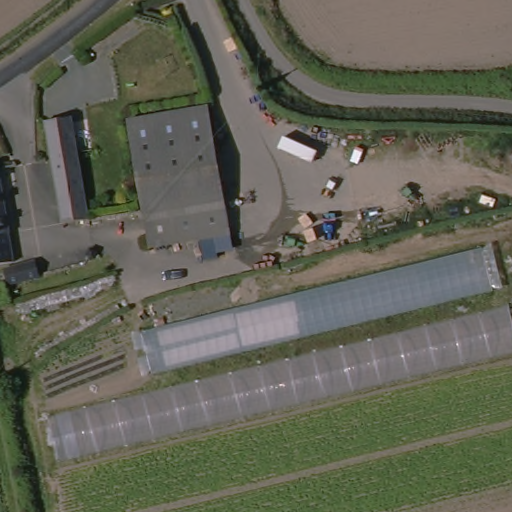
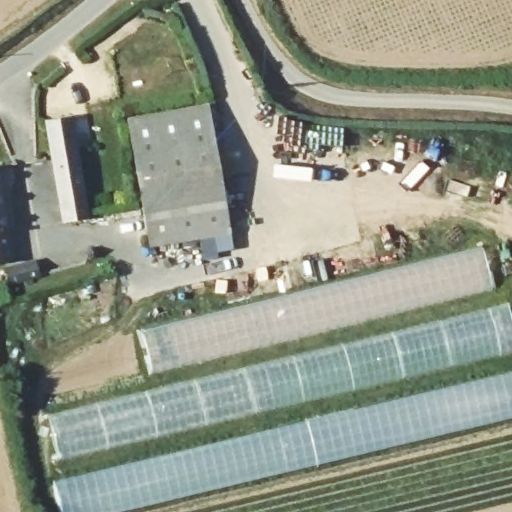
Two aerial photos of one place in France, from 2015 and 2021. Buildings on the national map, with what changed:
unchanged [(120,130),(198,108),(232,233),(153,255),(120,130)]
unchanged [(89,220),(63,227),(38,130),(62,121),(74,154),(89,220)]
unchanged [(74,154),(97,147),(114,214),(89,220),(74,154)]
unchanged [(0,267),(0,193),(14,264),(0,267)]
unchanged [(501,291),(138,382),(129,337),(489,250),(501,291)]
new [(41,277),(8,284),(11,302),(0,305),(0,283),(4,282),(2,275),(7,273),(5,268),(37,261),(41,277)]
demolished [(6,291),(40,277),(44,287),(45,292),(11,306),(16,322),(0,327),(0,306),(9,302),(6,291)]
unchanged [(506,302),(512,327),(512,348),(56,456),(43,414),(506,302)]
new [(512,373),(512,415),(117,512),(61,512),(54,482),(512,373)]

